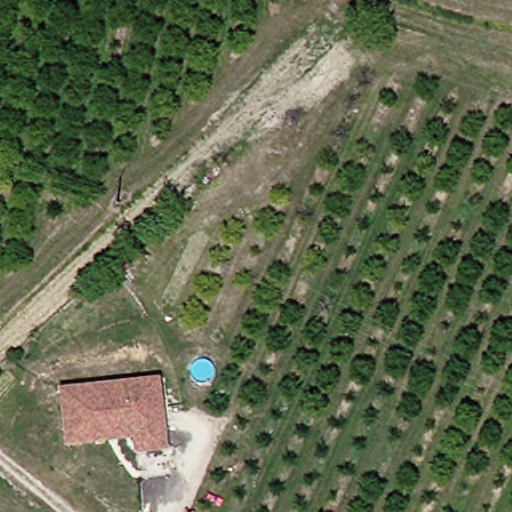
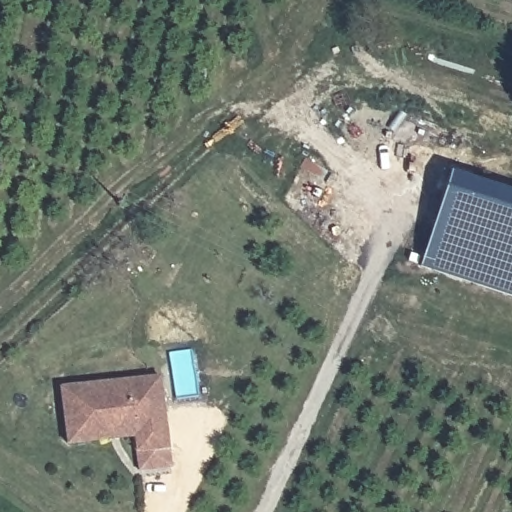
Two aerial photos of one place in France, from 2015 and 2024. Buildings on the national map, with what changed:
new [(424,266),(456,171),(512,188),(512,293),(424,266)]
unchanged [(67,448),(54,393),(138,376),(154,372),(158,391),(169,442),(137,450),(134,434),(95,443),(67,448)]

